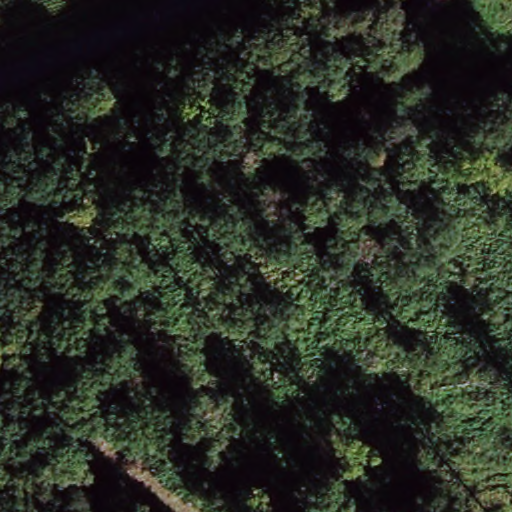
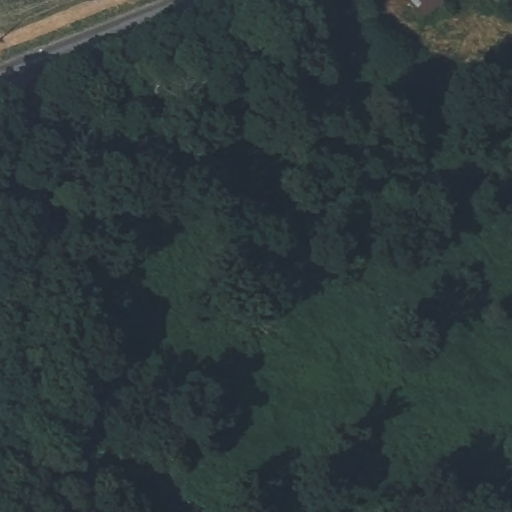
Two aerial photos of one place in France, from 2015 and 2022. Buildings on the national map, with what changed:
unchanged [(425,0),(445,0),(432,10),(425,0)]

